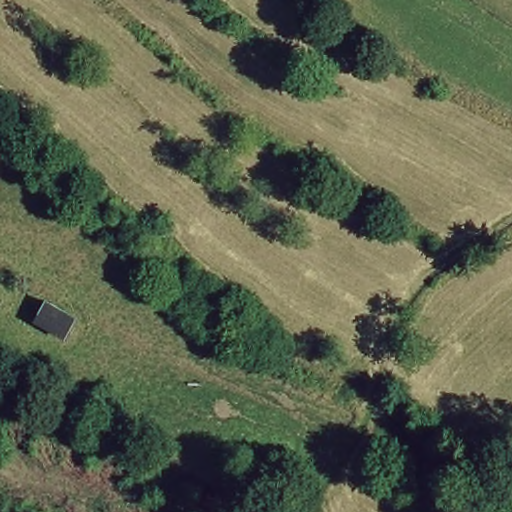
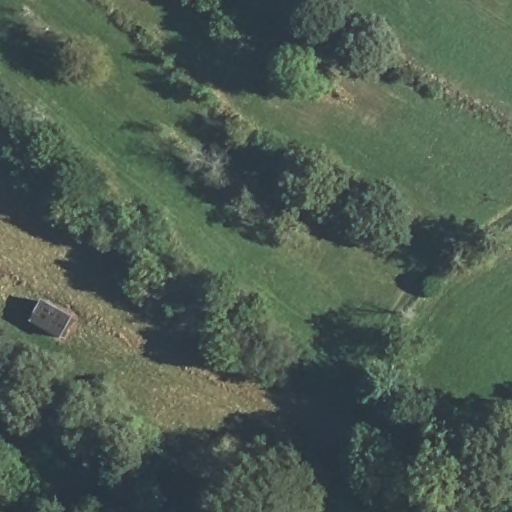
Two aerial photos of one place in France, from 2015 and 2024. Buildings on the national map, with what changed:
unchanged [(44,302),(77,317),(63,345),(31,326),(44,302)]

